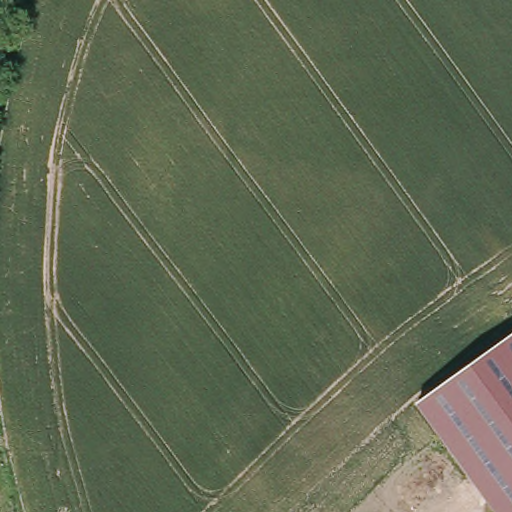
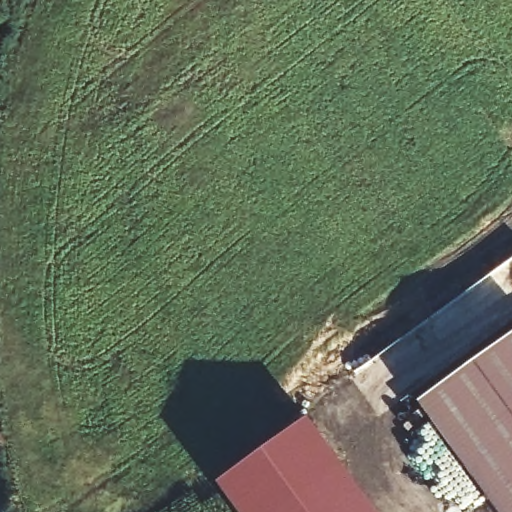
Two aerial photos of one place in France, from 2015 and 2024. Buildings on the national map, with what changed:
unchanged [(421,407),(512,345),(512,512),(498,512),(421,407)]
new [(374,512),(238,512),(205,460),(304,405),(374,512)]

